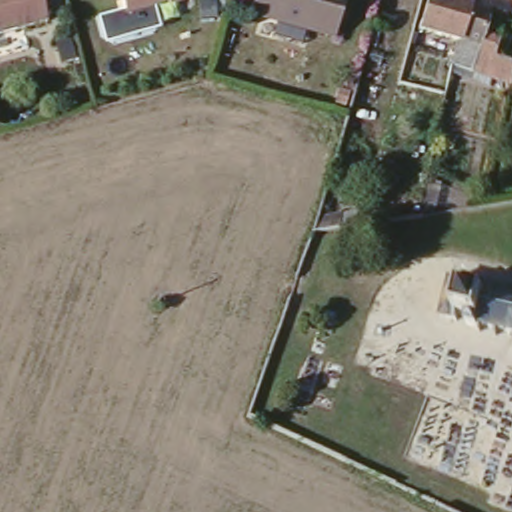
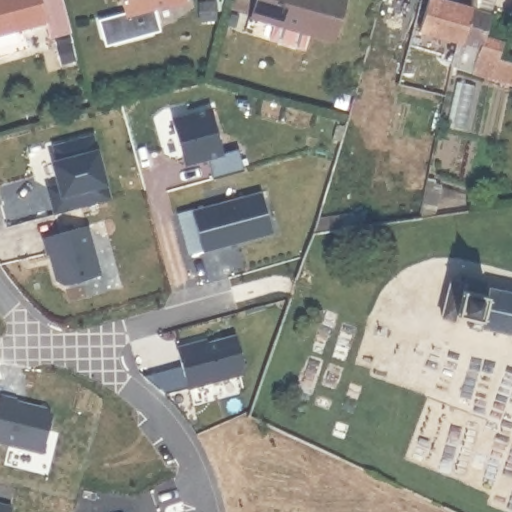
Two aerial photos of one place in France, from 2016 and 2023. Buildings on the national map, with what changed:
unchanged [(0,37),(0,0),(47,0),(53,24),(0,37)]
unchanged [(48,25),(53,24),(47,0),(62,0),(71,34),(51,39),(48,25)]
unchanged [(173,10),(172,6),(131,17),(127,0),(192,0),(193,4),(173,10)]
unchanged [(307,38),(302,51),(271,41),(275,29),(251,23),(257,0),(345,0),(332,44),(307,38)]
unchanged [(469,0),(481,0),(483,0),(483,10),(498,15),(497,20),(483,45),(482,45),(462,38),(422,25),(432,0),(446,0),(467,6),(469,0)]
unchanged [(512,0),(512,1),(508,0),(512,0)]
new [(161,31),(106,45),(100,20),(130,13),(131,17),(156,10),(161,31)]
unchanged [(483,45),(497,20),(501,23),(496,36),(505,41),(502,54),(512,58),(512,79),(476,68),(482,45),(483,45)]
unchanged [(347,86),(342,100),(332,97),(337,83),(347,86)]
new [(224,155),(239,150),(244,169),(214,178),(208,159),(185,165),(171,118),(210,106),(224,155)]
new [(99,149),(108,185),(111,198),(54,213),(47,187),(57,184),(51,161),(58,159),(51,145),(92,134),(99,149)]
new [(273,233),(204,252),(192,209),(262,192),(273,233)]
new [(89,224),(102,274),(64,285),(54,279),(43,237),(89,224)]
unchanged [(456,287),(465,289),(465,288),(468,288),(467,294),(486,299),(487,292),(490,292),(491,287),(493,288),(492,293),(506,296),(507,290),(511,292),(510,298),(512,298),(512,335),(501,332),(498,338),(496,337),(497,330),(484,327),(482,332),(479,332),(480,329),(470,326),(472,318),(462,315),(458,327),(454,325),(455,324),(447,322),(447,324),(443,323),(453,284),(457,284),(456,287)]
new [(209,343),(236,335),(244,364),(240,376),(189,391),(176,347),(207,340),(209,343)]
new [(16,399),(15,402),(46,409),(51,419),(42,456),(0,446),(0,395),(16,399)]
new [(12,507),(11,512),(0,512),(0,504),(12,507)]

